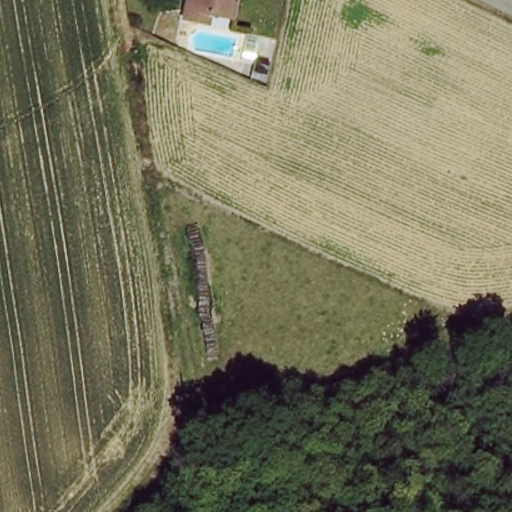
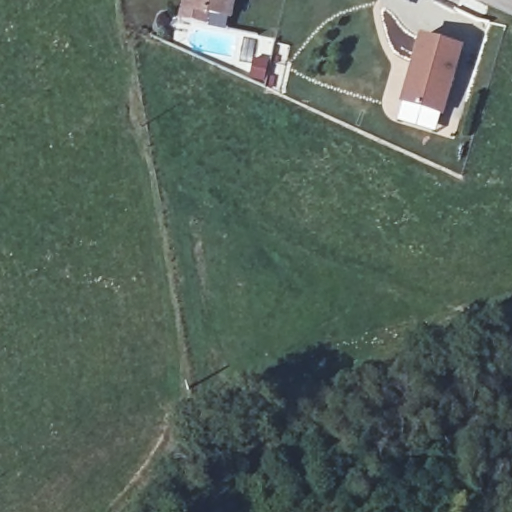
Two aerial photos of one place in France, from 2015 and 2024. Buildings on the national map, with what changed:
unchanged [(180,21),(184,0),(239,0),(238,15),(211,13),(208,28),(180,21)]
new [(461,46),(442,114),(401,103),(418,36),(461,46)]

